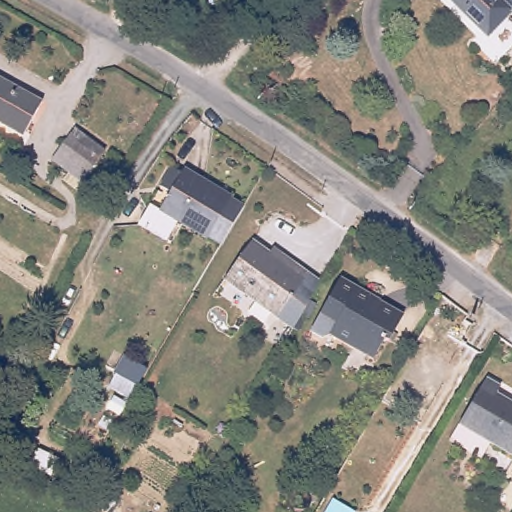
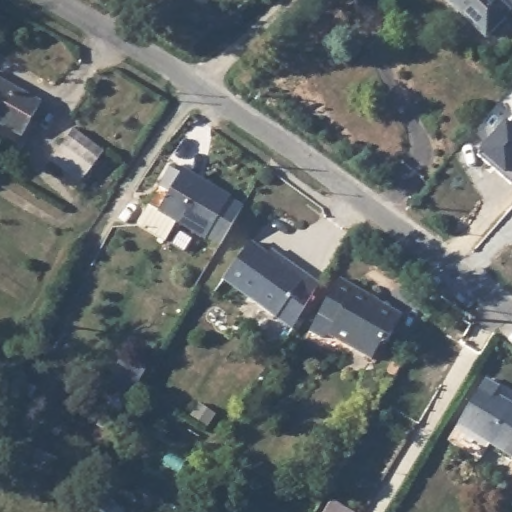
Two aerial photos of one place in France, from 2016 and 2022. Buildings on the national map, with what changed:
unchanged [(512,11),(510,9),(486,35),(445,0),(512,0),(512,11)]
unchanged [(39,107),(20,140),(0,128),(0,83),(39,107)]
new [(497,172),(501,170),(480,153),(507,122),(512,127),(512,183),(511,185),(497,172)]
unchanged [(109,144),(84,179),(57,160),(78,123),(109,144)]
unchanged [(224,247),(214,241),(209,241),(181,225),(171,240),(142,223),(153,205),(165,212),(176,194),(164,187),(175,167),(183,171),(188,170),(234,196),(236,200),(248,206),(224,247)]
unchanged [(219,284),(243,243),(256,251),(260,244),(285,259),(281,266),(286,269),(290,262),(311,274),(283,322),(219,284)]
unchanged [(392,347),(388,345),(377,364),(334,340),(327,343),(316,335),(347,285),(385,307),(407,320),(392,347)]
unchanged [(142,371),(132,388),(110,375),(120,358),(142,371)]
unchanged [(501,390),(498,396),(512,405),(512,456),(459,425),(484,381),(501,390)]

